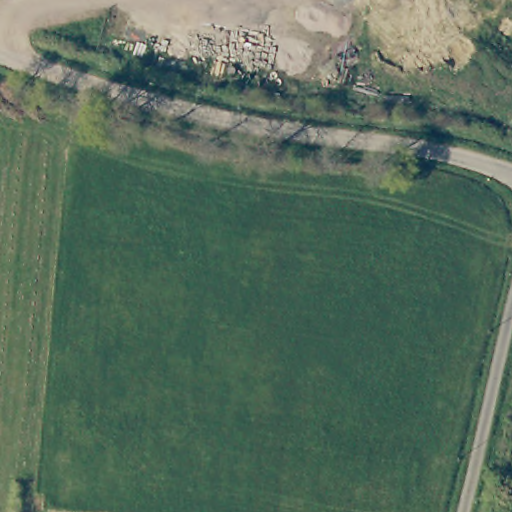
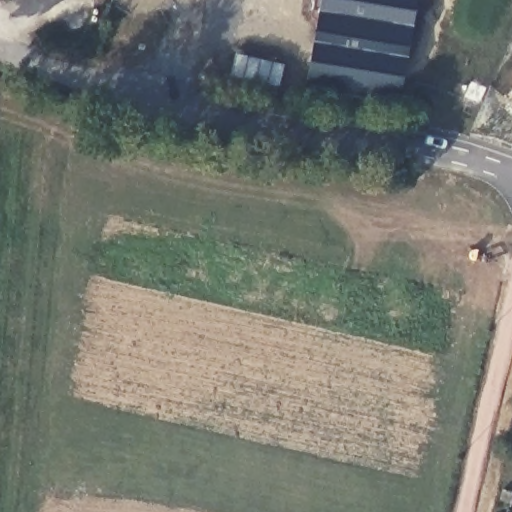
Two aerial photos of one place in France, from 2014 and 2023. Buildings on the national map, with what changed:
new [(397,104),(298,86),(312,0),(416,0),(397,104)]

